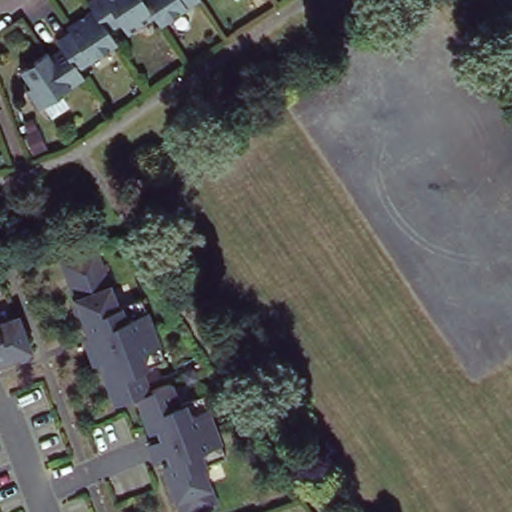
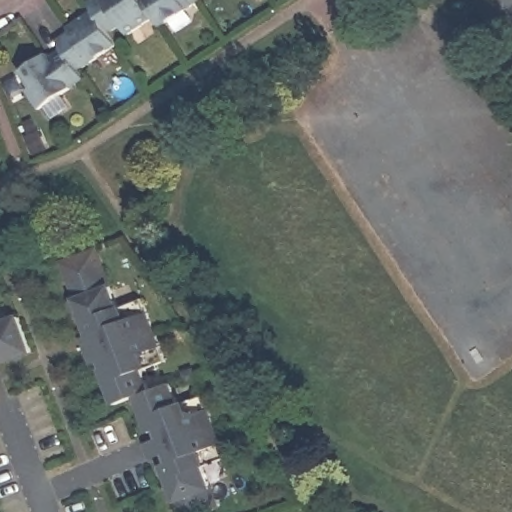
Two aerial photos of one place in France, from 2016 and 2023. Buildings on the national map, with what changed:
unchanged [(19,71),(47,51),(50,55),(62,48),(57,40),(70,32),(66,27),(91,10),(86,3),(91,0),(199,0),(200,1),(160,29),(152,16),(127,34),(124,30),(110,38),(116,46),(78,72),(83,80),(40,110),(26,90),(30,87),(19,71)]
unchanged [(106,356),(96,330),(95,331),(66,258),(101,245),(124,303),(147,295),(170,357),(147,365),(155,387),(141,392),(120,400),(107,364),(116,360),(114,354),(106,356)]
unchanged [(34,349),(0,360),(0,321),(21,315),(34,349)]
unchanged [(176,379),(184,400),(207,391),(231,454),(207,462),(221,500),(191,512),(187,512),(167,461),(174,459),(171,453),(164,456),(157,437),(165,435),(162,426),(155,428),(141,392),(155,387),(176,379)]

